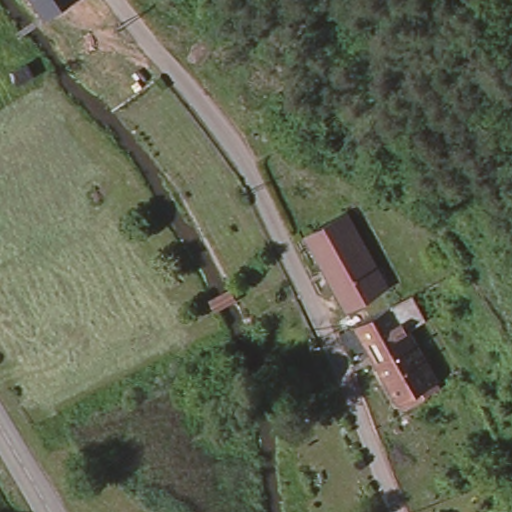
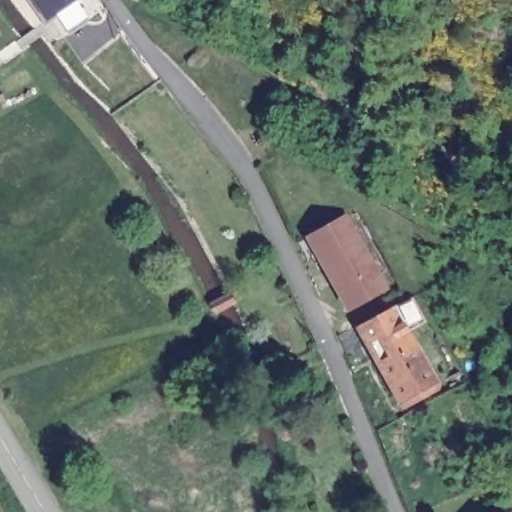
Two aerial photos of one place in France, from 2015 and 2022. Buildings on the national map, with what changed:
unchanged [(31,0),(74,0),(45,19),(31,0)]
unchanged [(343,212),(384,285),(347,305),(319,256),(314,259),(307,247),(312,244),(306,232),(343,212)]
unchanged [(397,303),(440,379),(403,399),(360,322),(397,303)]

